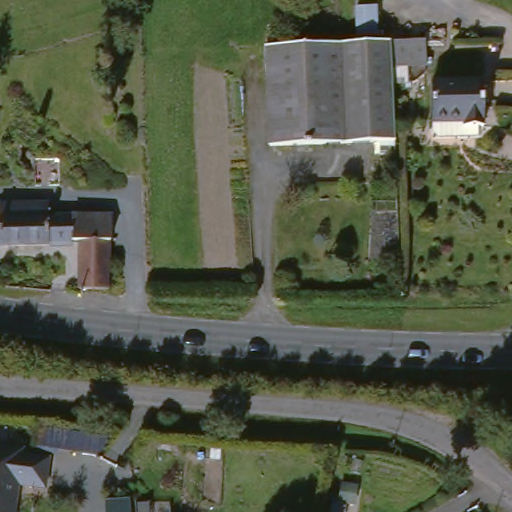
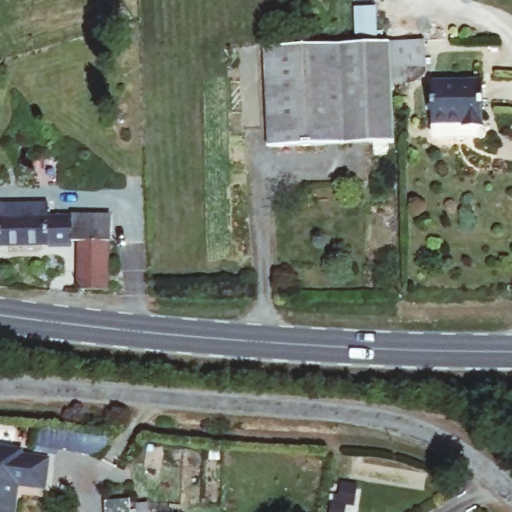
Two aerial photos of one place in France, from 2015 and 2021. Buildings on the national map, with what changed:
unchanged [(427,40),(428,62),(413,69),(411,99),(394,100),(394,141),(265,147),(265,51),(427,40)]
unchanged [(476,149),(438,151),(431,143),(430,89),(475,86),(476,149)]
unchanged [(40,205),(40,215),(0,215),(0,205),(40,205)]
unchanged [(99,287),(76,286),(75,238),(61,238),(61,250),(0,250),(0,215),(40,215),(75,215),(110,215),(110,223),(110,235),(110,239),(106,239),(106,287),(99,287)]
unchanged [(37,427),(47,428),(74,431),(73,453),(34,448),(37,427)]
unchanged [(18,458),(29,459),(44,460),(42,490),(27,487),(14,486),(12,512),(0,512),(0,448),(19,450),(18,458)]

